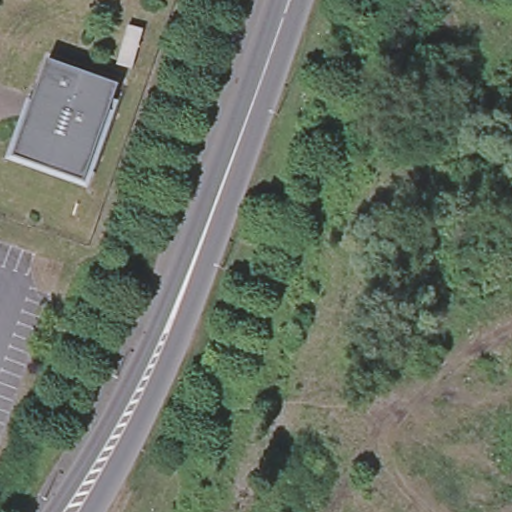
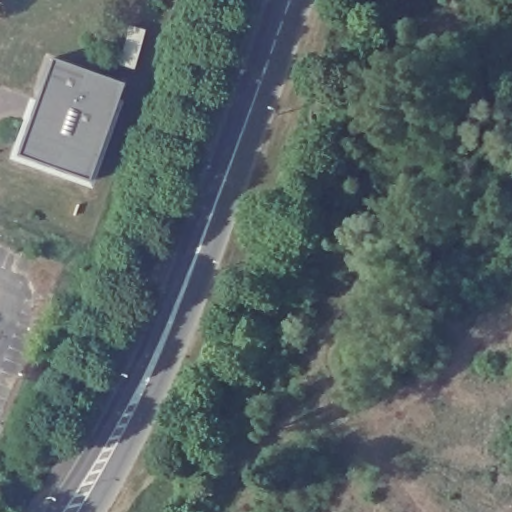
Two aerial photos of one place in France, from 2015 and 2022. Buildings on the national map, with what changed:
unchanged [(123,86),(87,184),(15,157),(50,60),(123,86)]

